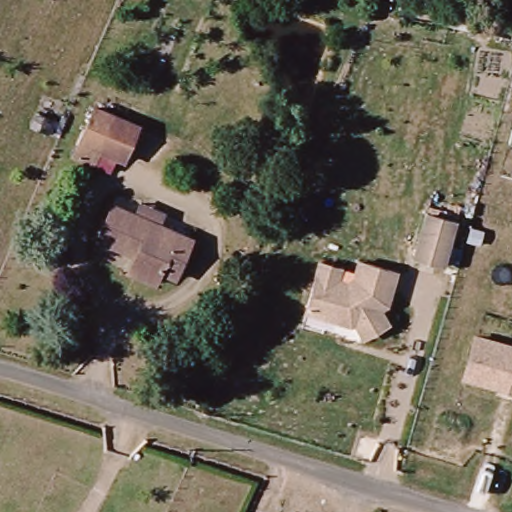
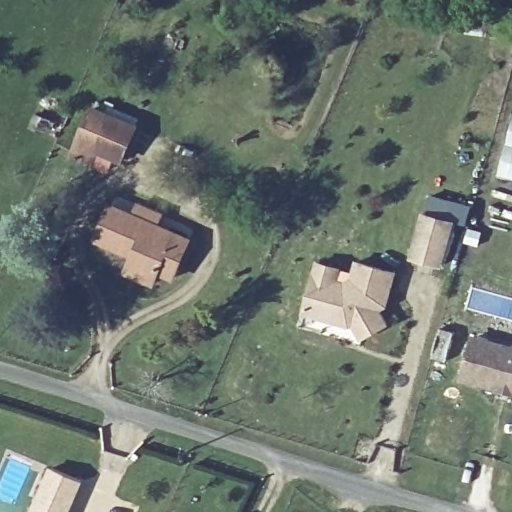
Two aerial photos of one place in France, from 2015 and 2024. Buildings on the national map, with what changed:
unchanged [(71,155),(94,107),(132,125),(117,158),(94,147),(87,162),(71,155)]
unchanged [(512,180),(499,176),(512,132),(512,180)]
unchanged [(145,281),(122,270),(131,252),(91,235),(107,199),(190,236),(171,277),(151,270),(145,281)]
unchanged [(427,216),(456,224),(443,267),(414,258),(427,216)]
unchanged [(306,312),(317,275),(320,262),(342,268),(337,281),(348,283),(355,279),(360,263),(397,274),(387,306),(381,305),(380,312),(389,325),(365,340),(353,322),(353,326),(337,322),(306,312)]
unchanged [(512,389),(462,374),(475,335),(512,346),(512,389)]
new [(30,512),(50,466),(84,481),(71,512),(30,512)]

